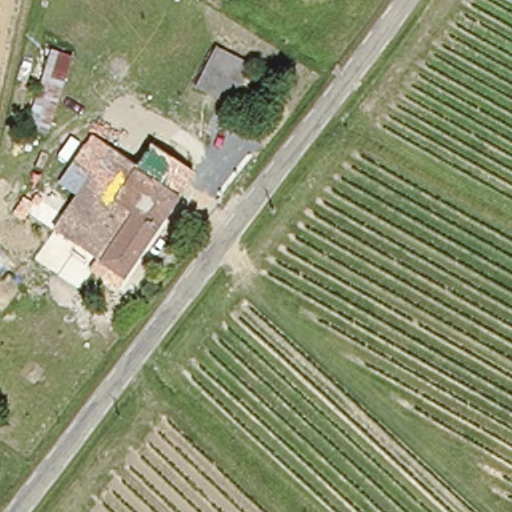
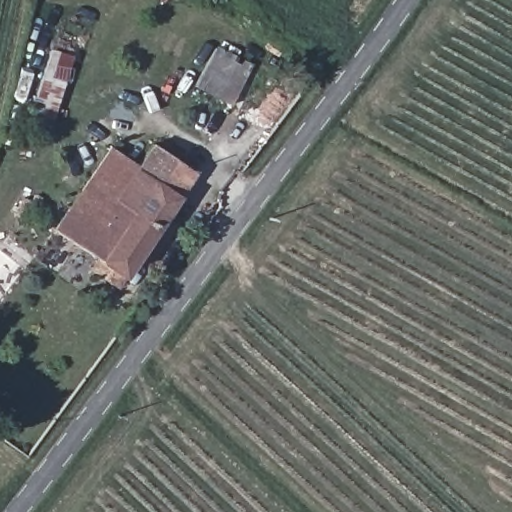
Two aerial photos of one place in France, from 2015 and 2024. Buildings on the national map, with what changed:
unchanged [(24,124),(49,49),(72,56),(46,131),(24,124)]
unchanged [(195,87),(207,62),(214,51),(250,70),(244,80),(230,106),(195,87)]
unchanged [(172,160),(194,175),(127,280),(124,276),(118,284),(110,278),(100,272),(103,265),(79,249),(72,245),(59,237),(82,200),(62,186),(92,137),(139,169),(153,147),(172,160)]

